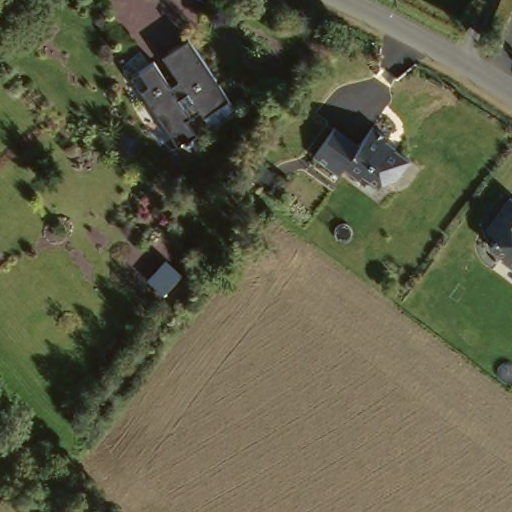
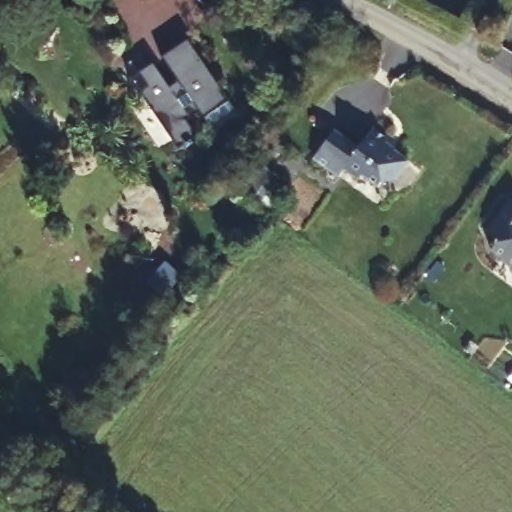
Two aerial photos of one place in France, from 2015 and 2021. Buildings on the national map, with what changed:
unchanged [(174,93),(181,88),(161,56),(187,39),(227,100),(201,117),(197,111),(185,119),(195,134),(189,138),(190,141),(184,146),(181,143),(175,147),(139,91),(130,77),(138,72),(153,62),(174,93)]
unchanged [(357,146),(370,127),(386,138),(385,140),(395,147),(393,149),(407,159),(394,178),(380,181),(377,185),(361,174),(357,179),(343,169),(338,176),(312,157),(332,129),(357,146)]
unchanged [(258,186),(271,194),(262,206),(250,198),(258,186)]
unchanged [(509,196),(512,199),(512,268),(498,257),(500,255),(488,246),(496,237),(485,228),(509,196)]

